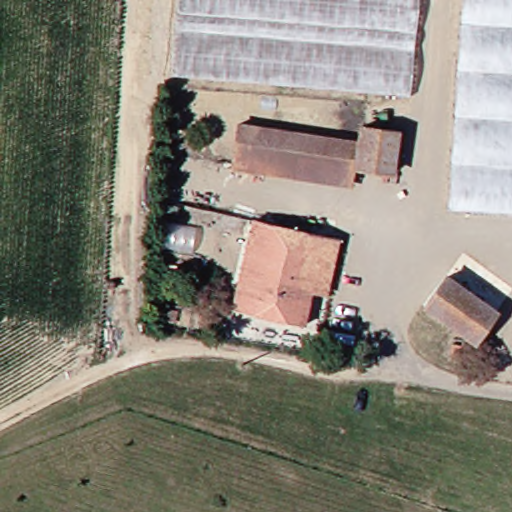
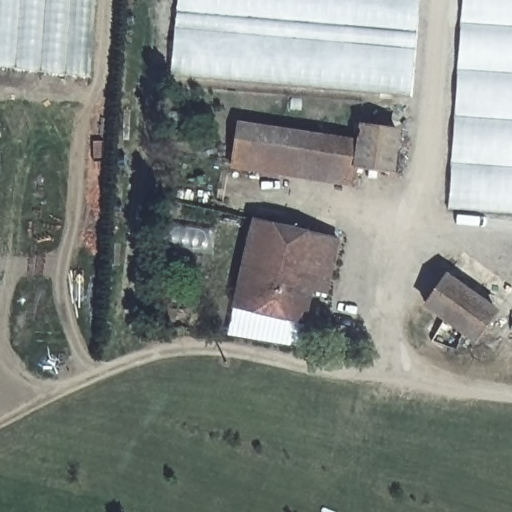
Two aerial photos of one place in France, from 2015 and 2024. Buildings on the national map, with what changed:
new [(0,0),(95,0),(90,77),(0,66),(0,0)]
unchanged [(178,60),(186,0),(412,0),(402,87),(178,60)]
unchanged [(443,210),(454,0),(512,0),(512,213),(443,210)]
unchanged [(350,137),(351,126),(392,130),(386,174),(347,172),(343,187),(200,173),(211,120),(350,137)]
unchanged [(298,298),(294,326),(227,309),(245,222),(308,236),(298,298)]
unchanged [(330,240),(320,300),(298,298),(308,236),(330,240)]
unchanged [(417,306),(438,278),(480,311),(487,318),(470,347),(417,306)]
unchanged [(101,327),(101,340),(79,341),(79,327),(101,327)]

